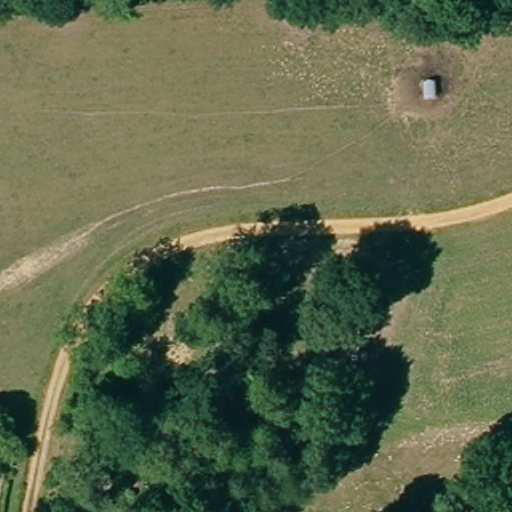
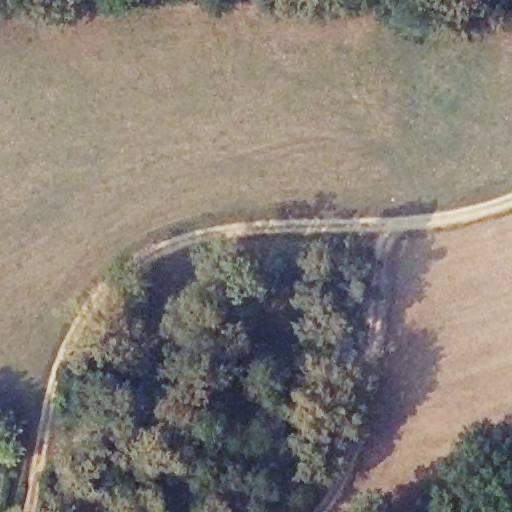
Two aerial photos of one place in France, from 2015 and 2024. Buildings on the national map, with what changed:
[]

